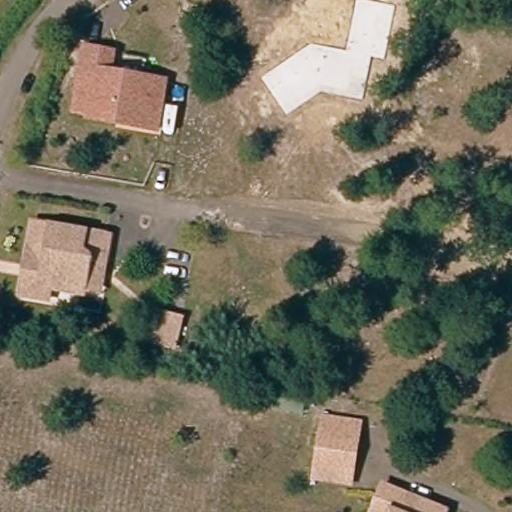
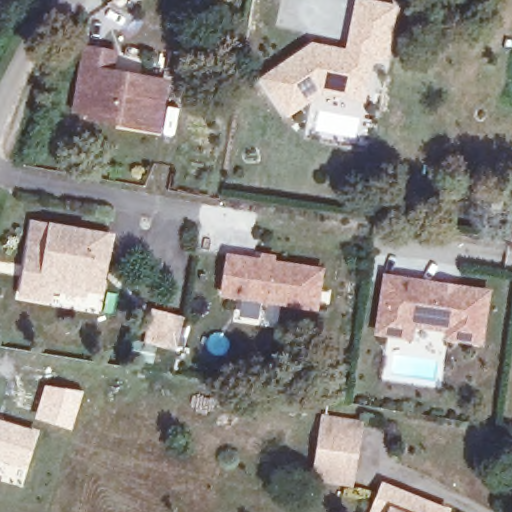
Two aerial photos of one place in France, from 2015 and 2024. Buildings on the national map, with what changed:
new [(372,59),(363,102),(321,94),(286,118),(260,79),(313,42),(345,49),(355,0),(376,0),(397,4),(387,62),(372,59)]
unchanged [(91,116),(75,113),(80,82),(85,50),(115,55),(112,74),(167,83),(158,133),(124,127),(90,121),(91,116)]
unchanged [(87,283),(83,285),(51,280),(48,297),(22,293),(26,274),(27,264),(35,220),(111,233),(106,262),(102,285),(87,283)]
new [(512,240),(511,240),(512,237),(512,240)]
new [(264,263),(270,264),(321,272),(315,310),(222,296),(228,258),(264,263)]
new [(385,279),(402,282),(438,287),(454,290),(486,294),(478,343),(446,338),(448,331),(410,325),(408,338),(377,334),(384,283),(385,279)]
unchanged [(178,352),(138,342),(145,307),(184,317),(178,352)]
new [(41,394),(47,396),(50,386),(79,394),(69,429),(34,419),(41,394)]
unchanged [(313,478),(324,418),(361,424),(350,485),(313,478)]
new [(37,433),(28,469),(0,461),(0,421),(37,433)]
unchanged [(436,512),(371,512),(382,488),(436,512)]

